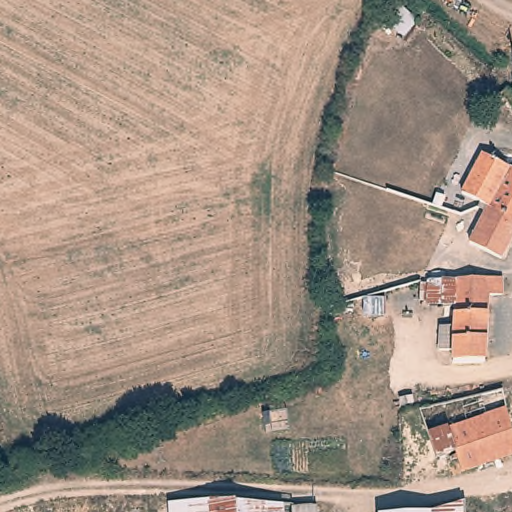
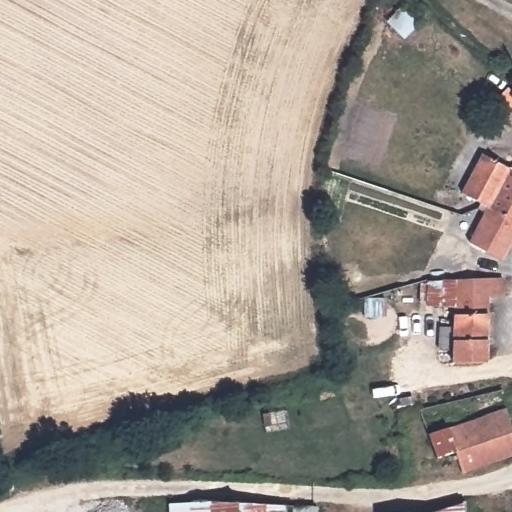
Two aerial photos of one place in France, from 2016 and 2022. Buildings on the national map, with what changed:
unchanged [(395,3),(415,21),(400,36),(383,19),(395,3)]
unchanged [(483,209),(485,204),(465,193),(485,156),(508,168),(512,160),(512,241),(503,258),(478,243),(493,214),(483,209)]
unchanged [(500,298),(486,298),(486,363),(456,363),(456,350),(443,350),(444,329),(446,329),(446,310),(428,310),(428,304),(421,304),(421,282),(428,280),(500,280),(500,298)]
unchanged [(381,292),(384,305),(367,308),(365,295),(381,292)]
unchanged [(512,452),(450,470),(444,455),(432,457),(422,407),(503,391),(512,429),(512,452)]
unchanged [(169,504),(220,500),(282,507),(282,512),(169,512),(169,504)]
unchanged [(464,501),(464,512),(435,512),(464,501)]
unchanged [(293,506),(320,504),(321,512),(294,512),(293,506)]

